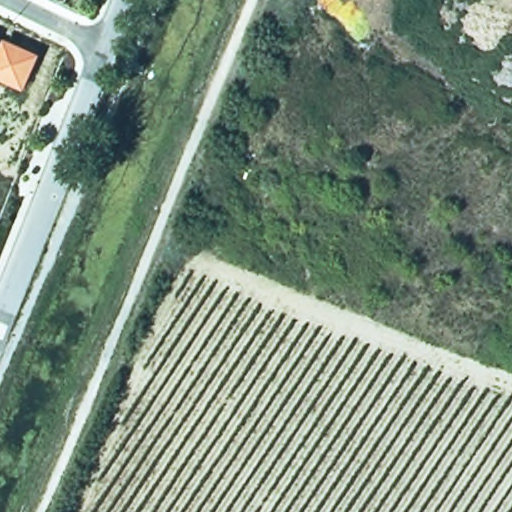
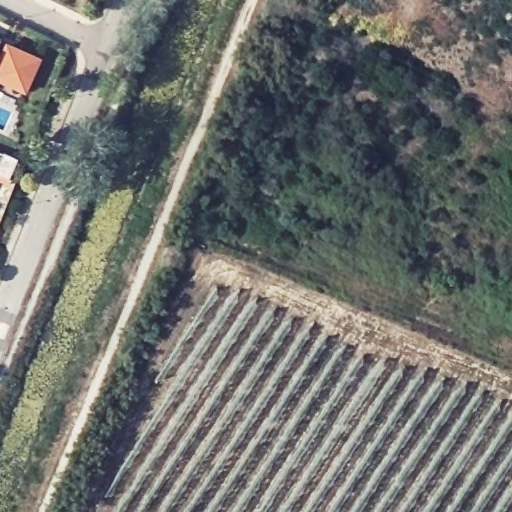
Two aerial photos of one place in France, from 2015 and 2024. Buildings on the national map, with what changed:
unchanged [(0,44),(1,41),(42,58),(25,95),(0,81),(0,44)]

